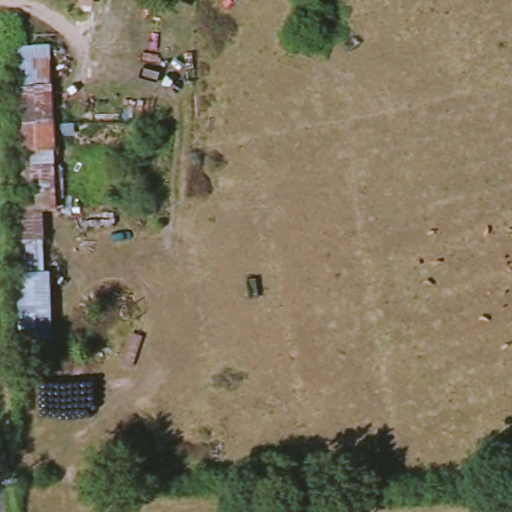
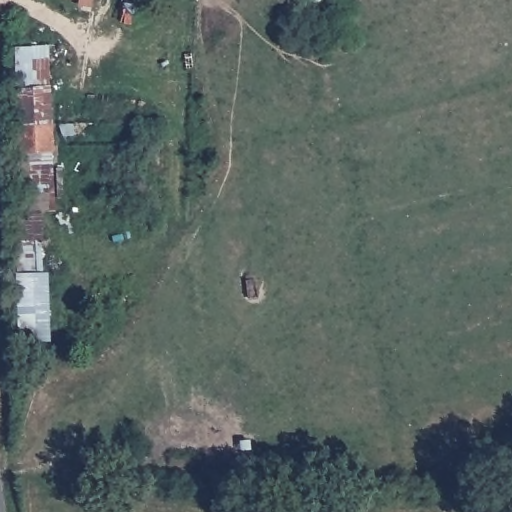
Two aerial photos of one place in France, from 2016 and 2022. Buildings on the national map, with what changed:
unchanged [(80,0),(91,0),(91,1),(80,0)]
unchanged [(15,171),(15,138),(20,138),(17,64),(49,62),(53,170),(15,171)]
unchanged [(40,270),(50,269),(51,341),(15,341),(13,273),(15,239),(40,237),(40,270)]

